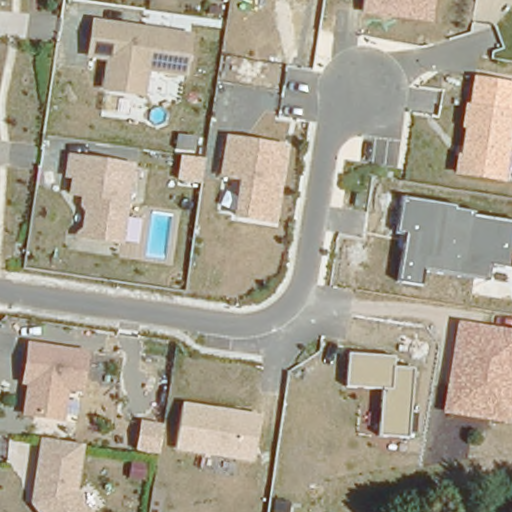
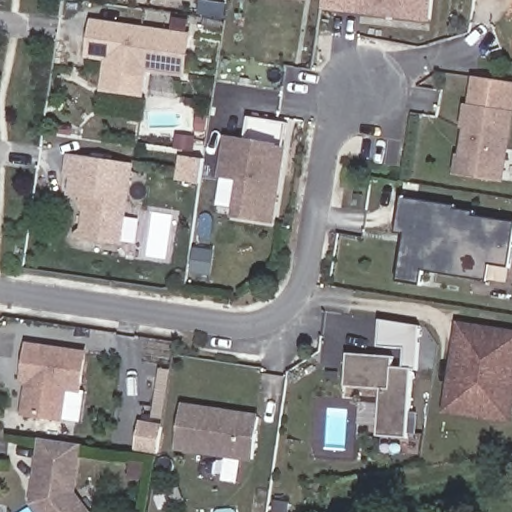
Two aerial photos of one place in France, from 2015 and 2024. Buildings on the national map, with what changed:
new [(322,9),(323,0),(362,0),(360,14),(322,9)]
unchanged [(431,21),(360,14),(362,0),(433,0),(431,21)]
unchanged [(189,78),(151,73),(146,99),(103,93),(108,61),(86,58),(93,19),(193,33),(189,78)]
unchanged [(504,183),(453,174),(456,154),(461,154),(464,129),(460,127),(463,104),(467,105),(472,76),(512,83),(512,138),(504,183)]
unchanged [(275,223),(232,216),(238,182),(218,179),(224,136),(288,146),(275,223)]
unchanged [(135,163),(123,247),(76,239),(76,230),(79,228),(82,212),(79,208),(80,199),(68,197),(71,179),(61,178),(66,151),(135,163)]
unchanged [(509,268),(490,265),(488,279),(423,269),(421,288),(397,283),(405,235),(395,232),(401,196),(455,204),(454,208),(475,211),(476,213),(512,219),(512,253),(509,268)]
unchanged [(511,423),(443,414),(456,318),(512,328),(512,420),(511,423)]
unchanged [(89,352),(84,395),(68,393),(64,423),(22,415),(26,385),(20,384),(25,344),(89,352)]
unchanged [(393,365),(417,367),(410,439),(376,435),(381,391),(342,386),(345,353),(393,355),(393,365)]
unchanged [(252,462),(175,450),(182,404),(260,416),(252,462)]
unchanged [(160,455),(135,451),(141,421),(165,423),(160,455)]
unchanged [(79,493),(93,512),(34,512),(28,503),(36,439),(85,446),(79,493)]

